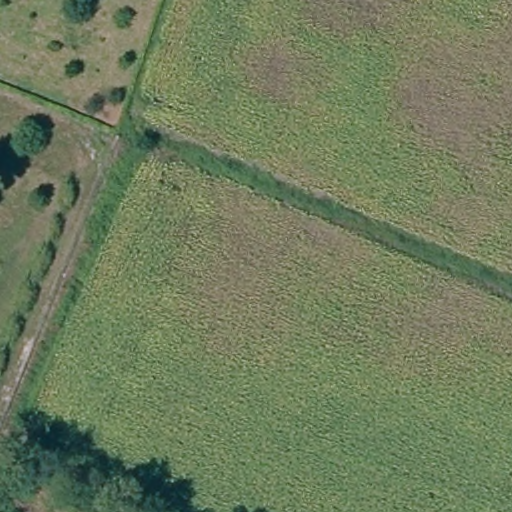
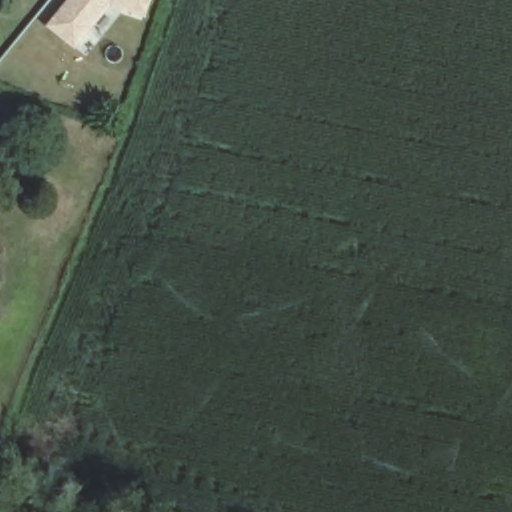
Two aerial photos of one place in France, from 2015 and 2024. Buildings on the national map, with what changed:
new [(66,0),(151,0),(146,18),(119,10),(117,6),(111,4),(74,49),(45,26),(66,0)]

